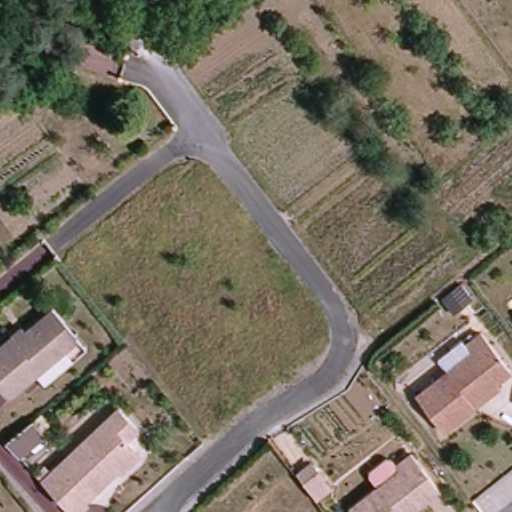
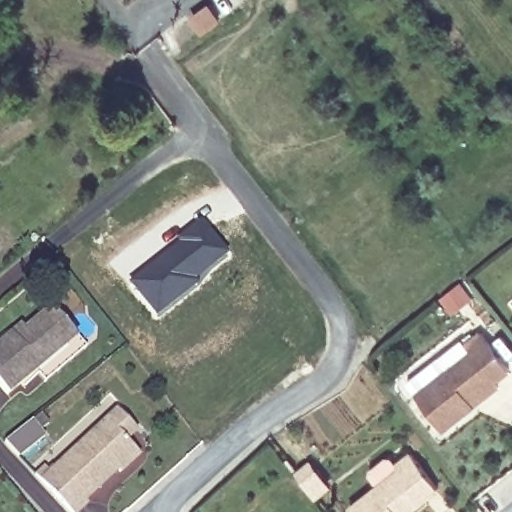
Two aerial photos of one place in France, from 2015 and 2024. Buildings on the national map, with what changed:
new [(171,246),(170,243),(203,217),(230,254),(187,292),(157,317),(129,282),(171,246)]
unchanged [(55,315),(89,355),(47,390),(37,378),(67,353),(44,325),(55,315)]
unchanged [(0,389),(0,355),(15,342),(25,334),(28,338),(44,325),(67,353),(37,378),(10,401),(0,389)]
unchanged [(478,411),(447,436),(420,402),(448,380),(440,368),(466,347),(470,351),(485,339),(512,372),(512,377),(500,387),(503,392),(478,411)]
unchanged [(130,421),(141,435),(130,444),(137,453),(142,460),(122,476),(119,472),(84,502),(86,505),(77,512),(69,512),(42,480),(124,413),(130,421)]
unchanged [(17,455),(5,440),(32,417),(45,433),(17,455)]
unchanged [(382,493),(371,477),(371,472),(386,460),(392,461),(400,472),(415,460),(442,495),(420,512),(358,512),(382,493)]
new [(310,463),(328,487),(316,497),(297,474),(310,463)]

